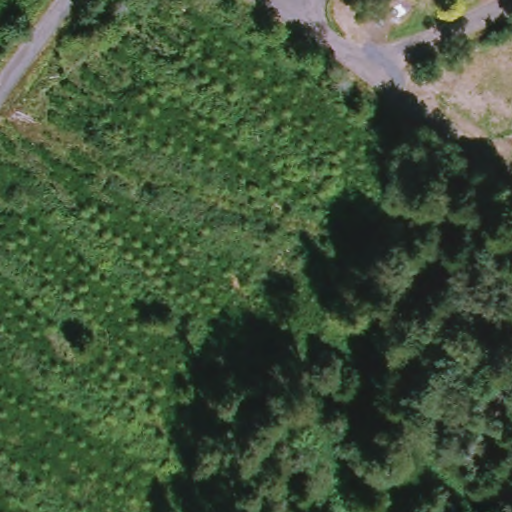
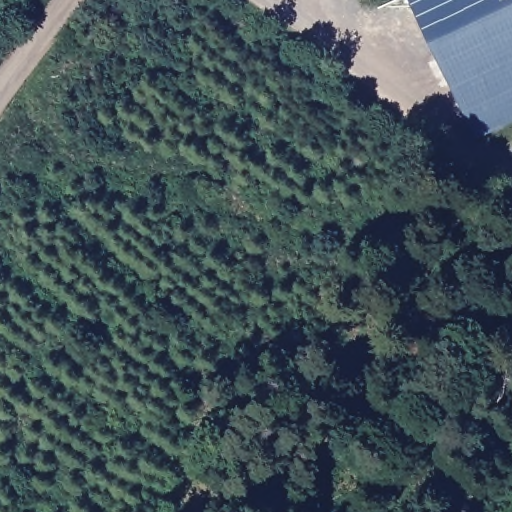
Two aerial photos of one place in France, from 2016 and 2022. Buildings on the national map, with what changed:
unchanged [(416,0),(417,0),(416,1),(416,0)]
new [(481,141),(416,1),(417,0),(512,0),(512,126),(481,141)]

